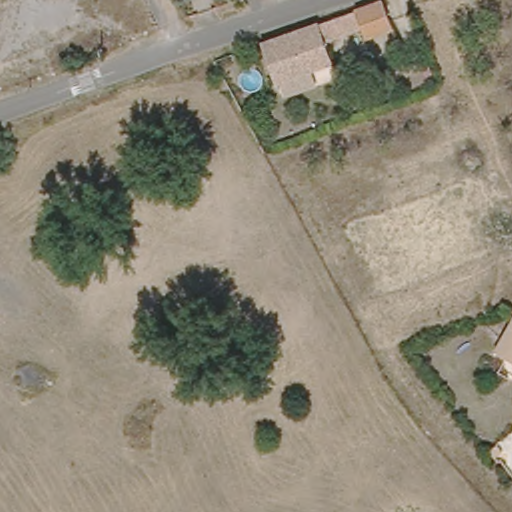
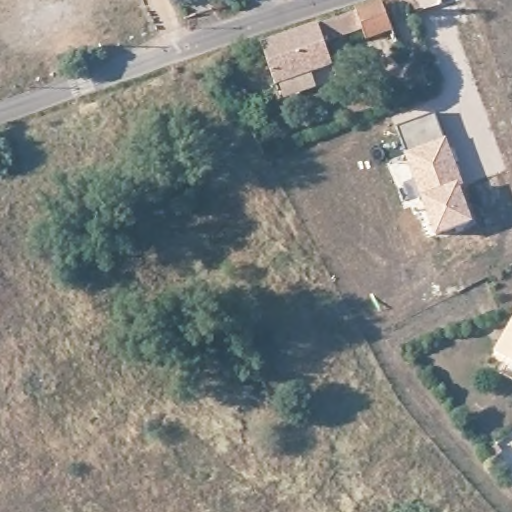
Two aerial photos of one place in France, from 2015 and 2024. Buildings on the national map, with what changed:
unchanged [(275,85),(260,46),(358,14),(385,4),(395,34),(370,44),(367,37),(328,51),(332,65),(314,72),(317,81),(282,94),(280,84),(275,85)]
new [(434,112),(445,136),(403,153),(395,124),(434,112)]
new [(445,136),(464,186),(462,187),(473,224),(432,237),(418,197),(412,179),(403,153),(445,136)]
unchanged [(497,334),(512,316),(512,348),(497,334)]

